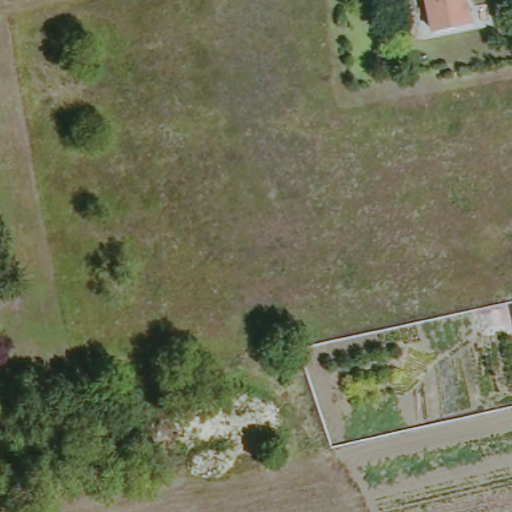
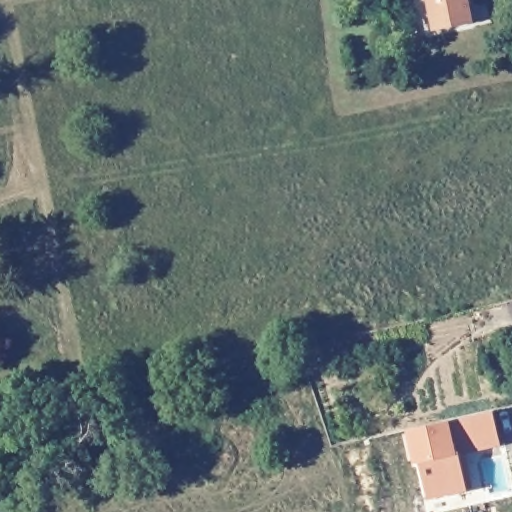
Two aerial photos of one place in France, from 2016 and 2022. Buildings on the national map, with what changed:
unchanged [(446,36),(434,0),(479,0),(486,22),(446,36)]
new [(460,455),(469,491),(429,500),(422,464),(414,465),(407,431),(451,421),(494,411),(501,447),(460,455)]

